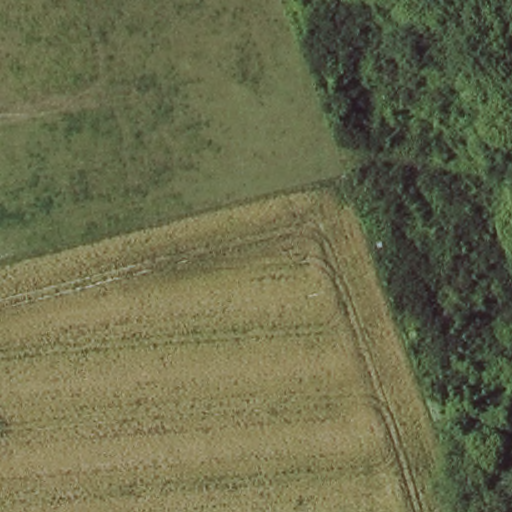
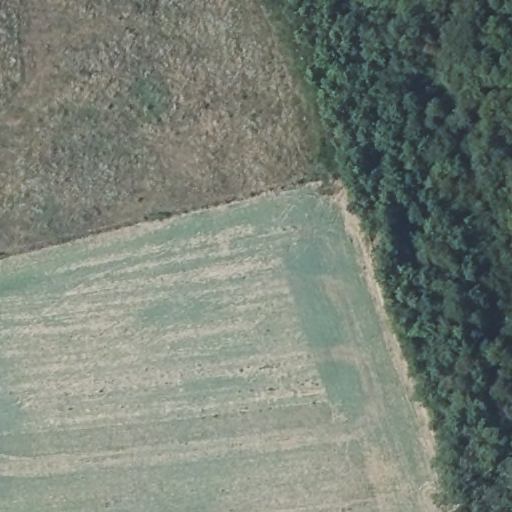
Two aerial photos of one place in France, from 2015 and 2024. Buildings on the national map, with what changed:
[]

